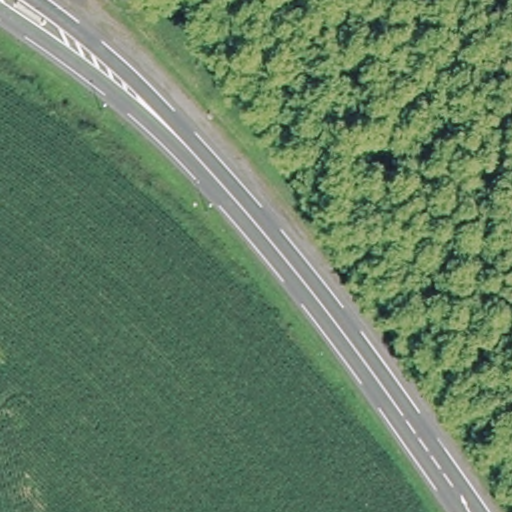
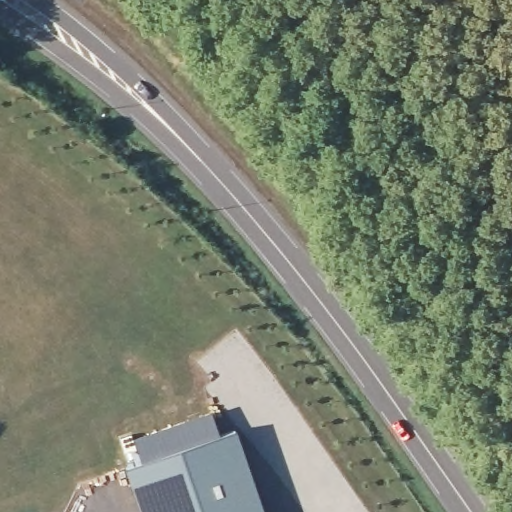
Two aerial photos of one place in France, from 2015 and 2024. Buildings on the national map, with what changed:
new [(220,435),(236,430),(264,512),(140,512),(125,469),(141,462),(134,437),(211,411),(220,435)]

